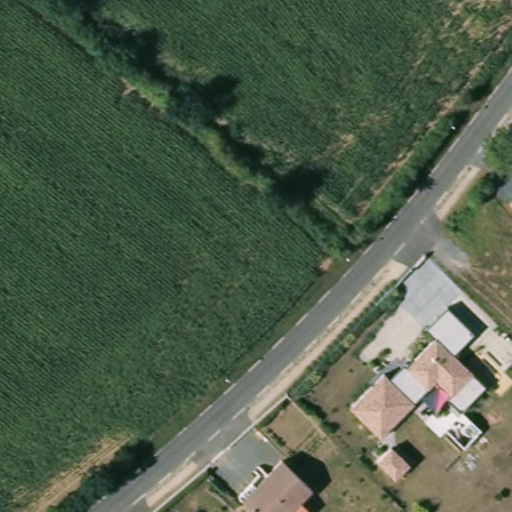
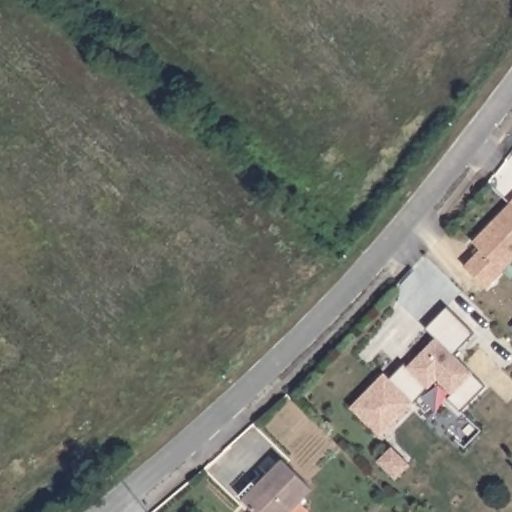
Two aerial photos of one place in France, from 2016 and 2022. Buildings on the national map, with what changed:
unchanged [(512,204),(512,208),(509,206),(512,204)]
new [(464,266),(481,249),(473,240),(507,205),(509,206),(512,208),(512,262),(487,287),(464,266)]
unchanged [(351,406),(382,372),(389,378),(404,363),(407,366),(437,338),(426,328),(448,307),(473,332),(453,355),(485,386),(460,412),(447,399),(450,396),(436,381),(380,437),(351,406)]
unchanged [(376,462),(392,447),(410,465),(394,480),(376,462)]
unchanged [(253,512),(240,500),(253,486),(279,460),(285,465),(310,490),(288,512),(253,512)]

